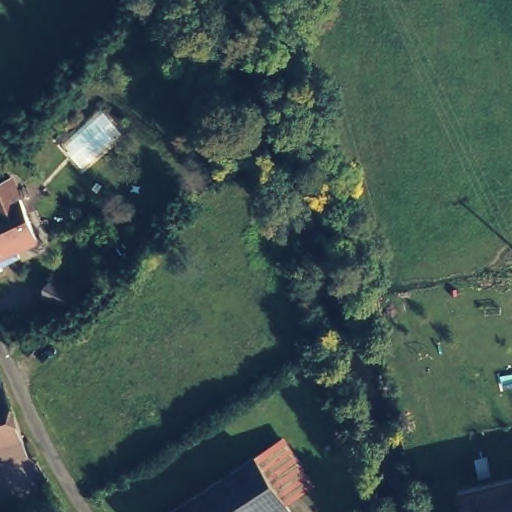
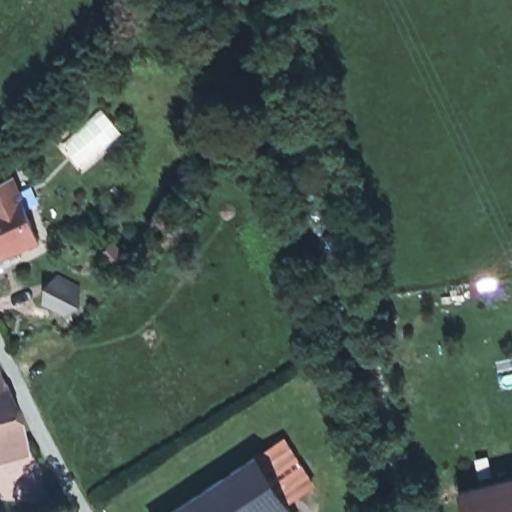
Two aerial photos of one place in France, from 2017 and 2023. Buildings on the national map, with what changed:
unchanged [(0,265),(0,179),(16,172),(45,237),(23,247),(26,254),(0,265)]
unchanged [(115,245),(128,260),(118,270),(105,255),(115,245)]
unchanged [(78,284),(67,307),(44,295),(55,272),(78,284)]
unchanged [(20,441),(0,447),(0,387),(20,441)]
unchanged [(255,456),(282,438),(310,480),(283,498),(292,512),(171,512),(255,456)]
unchanged [(458,486),(512,473),(512,512),(465,512),(458,486)]

